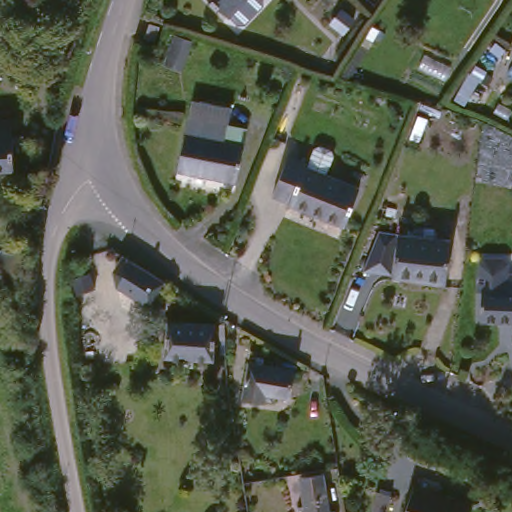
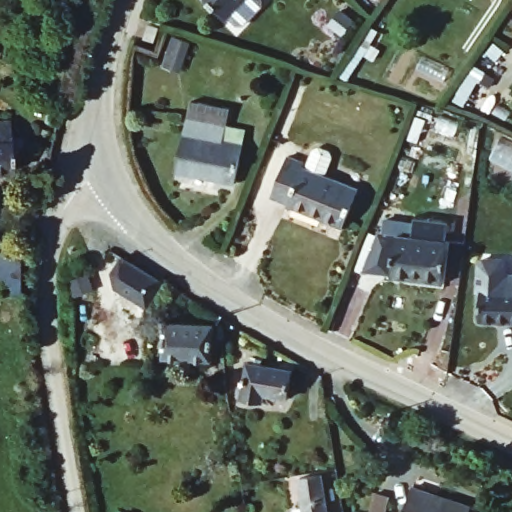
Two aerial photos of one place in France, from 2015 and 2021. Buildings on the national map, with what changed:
unchanged [(225,26),(197,0),(252,0),(225,26)]
unchanged [(209,41),(204,64),(186,60),(190,37),(209,41)]
unchanged [(226,101),(218,142),(236,146),(229,184),(173,171),(188,93),(226,101)]
unchanged [(0,125),(14,124),(16,140),(26,140),(26,150),(16,151),(18,173),(0,174),(0,125)]
unchanged [(341,233),(283,209),(284,204),(271,198),(286,161),(303,168),(311,151),(329,159),(320,183),(356,196),(341,233)]
unchanged [(461,246),(457,289),(374,280),(388,240),(461,246)]
unchanged [(493,324),(497,294),(493,294),(498,262),(512,264),(512,327),(493,324)]
unchanged [(158,288),(143,314),(116,300),(109,281),(118,265),(158,288)]
unchanged [(204,364),(161,363),(161,331),(168,331),(168,321),(181,321),(181,332),(205,332),(204,364)]
unchanged [(288,377),(284,401),(261,399),(261,404),(240,401),(246,370),(288,377)]
unchanged [(320,512),(301,512),(297,483),(314,480),(320,512)]
unchanged [(468,512),(405,512),(411,492),(468,511),(468,512)]
unchanged [(389,512),(376,512),(381,495),(393,499),(389,512)]

